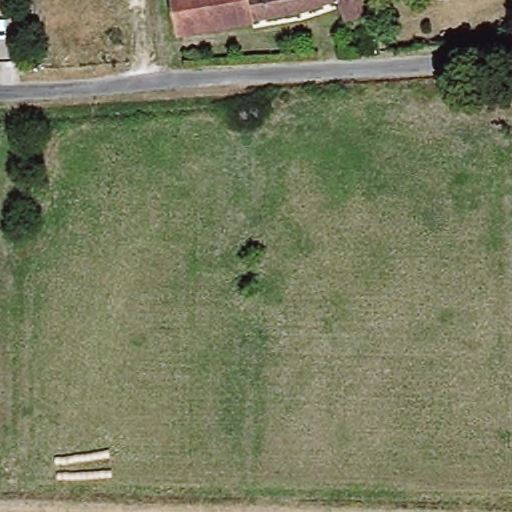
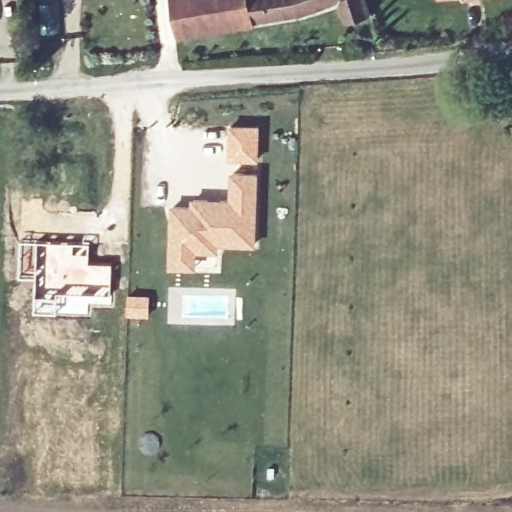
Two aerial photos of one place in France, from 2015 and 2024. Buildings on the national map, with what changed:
unchanged [(332,29),(324,14),(280,24),(178,34),(176,0),(360,0),(365,17),(332,29)]
unchanged [(469,5),(443,4),(443,0),(478,0),(469,5)]
new [(228,124),(260,124),(258,160),(227,159),(228,124)]
new [(169,205),(189,204),(189,197),(228,197),(230,170),(258,171),(256,246),(217,245),(217,253),(198,252),(194,267),(168,267),(169,205)]
new [(44,240),(89,242),(89,261),(112,262),(110,305),(88,303),(87,315),(55,313),(55,309),(58,309),(58,302),(42,301),(42,287),(38,287),(44,240)]

